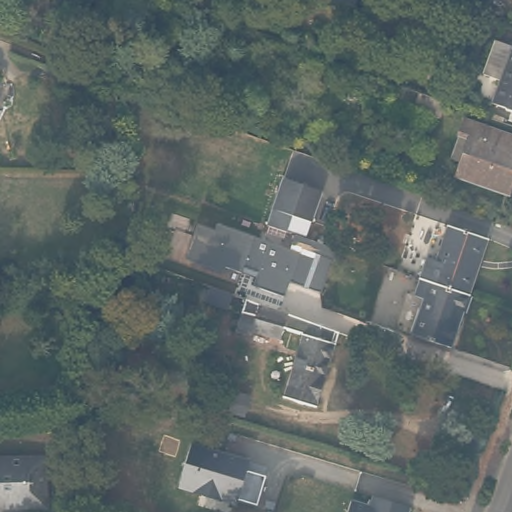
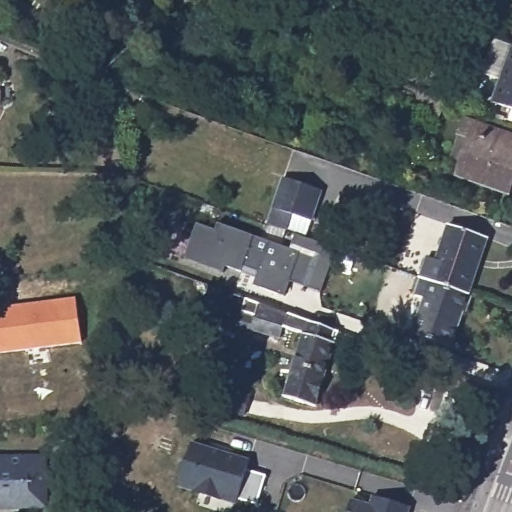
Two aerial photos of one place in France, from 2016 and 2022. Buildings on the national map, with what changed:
unchanged [(490,102),(498,80),(482,74),(495,41),(512,48),(512,110),(490,102)]
unchanged [(403,86),(397,102),(390,99),(395,83),(403,86)]
unchanged [(430,96),(442,100),(436,116),(412,108),(418,91),(430,96)]
unchanged [(512,139),(512,193),(510,196),(460,178),(465,165),(453,161),(467,122),(512,139)]
unchanged [(283,175),(321,188),(311,219),(292,212),(286,229),(267,222),(283,175)]
unchanged [(290,249),(296,233),(286,229),(292,212),(311,219),(306,236),(338,249),(322,292),(288,280),(285,294),(254,284),(257,276),(242,270),(226,265),(224,273),(185,259),(198,224),(216,231),(220,223),(290,249)]
unchanged [(427,255),(437,258),(449,222),(488,235),(468,292),(466,291),(420,276),(427,255)]
unchanged [(415,292),(420,276),(466,291),(468,292),(471,293),(465,311),(463,309),(450,344),(412,331),(425,296),(415,292)]
new [(0,307),(76,296),(81,341),(0,351),(0,307)]
unchanged [(250,320),(253,310),(254,306),(263,309),(333,333),(310,403),(280,393),(298,336),(275,328),(250,320)]
unchanged [(250,460),(247,470),(266,476),(258,504),(239,499),(237,503),(180,488),(194,442),(250,460)]
unchanged [(0,491),(0,453),(45,451),(46,501),(25,502),(0,503),(0,491)]
unchanged [(368,506),(371,496),(407,506),(406,512),(346,512),(349,501),(368,506)]

